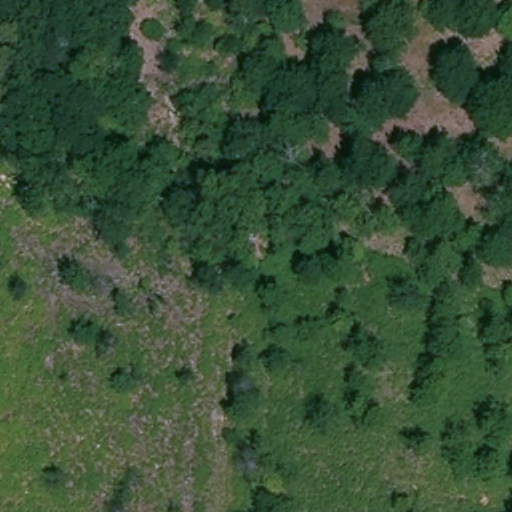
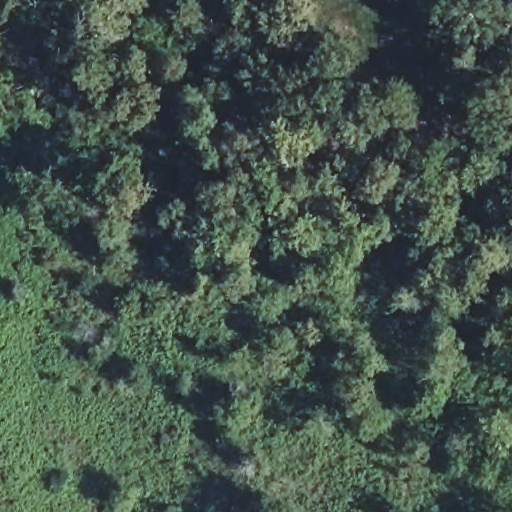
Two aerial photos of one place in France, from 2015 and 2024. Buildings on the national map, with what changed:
[]

